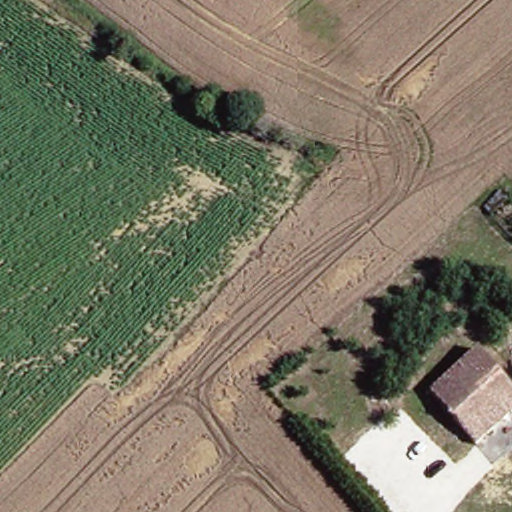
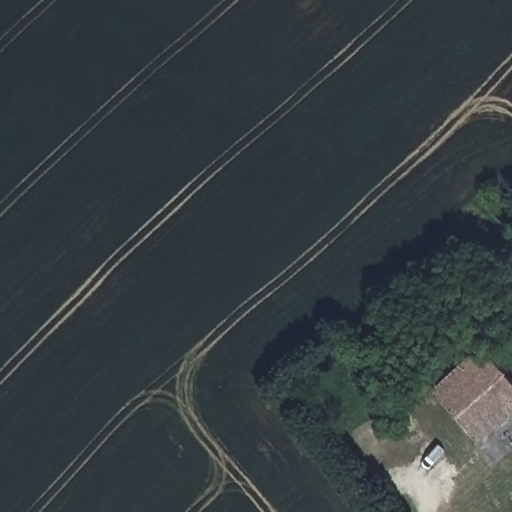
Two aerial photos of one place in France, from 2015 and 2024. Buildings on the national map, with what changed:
unchanged [(435,390),(466,363),(470,367),(486,354),(512,380),(512,417),(483,443),(448,404),(435,390)]

